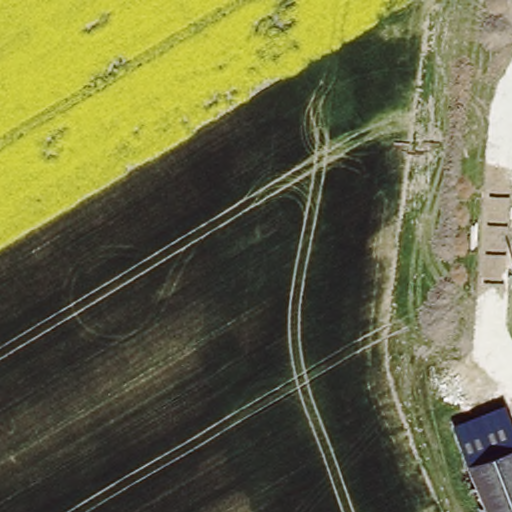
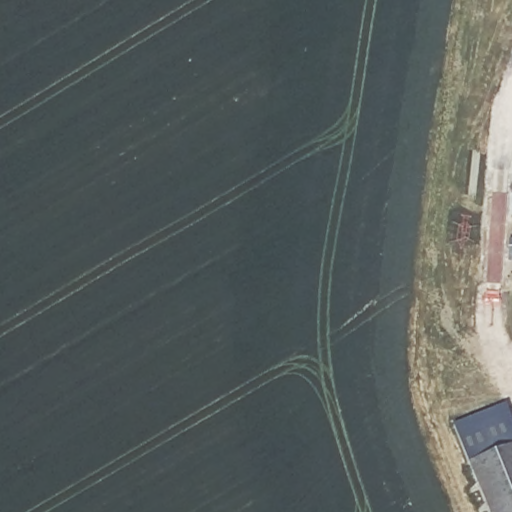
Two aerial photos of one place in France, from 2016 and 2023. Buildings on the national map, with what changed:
unchanged [(512,446),(468,464),(459,440),(510,419),(512,424),(512,446)]
unchanged [(512,512),(487,512),(468,464),(512,446),(512,512)]

